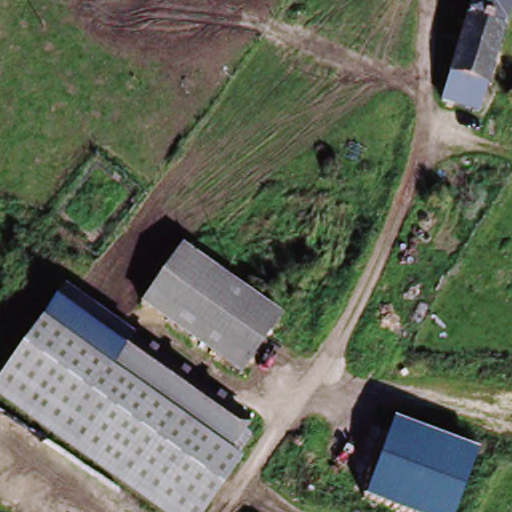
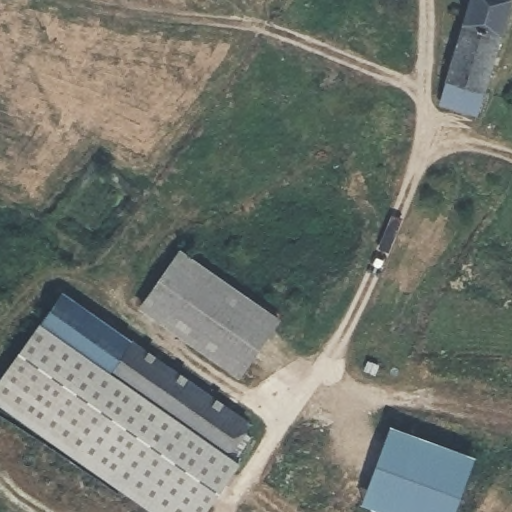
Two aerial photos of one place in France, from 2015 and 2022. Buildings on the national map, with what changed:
unchanged [(470,0),(510,0),(489,68),(452,57),(470,0)]
unchanged [(489,68),(481,94),(444,82),(452,57),(489,68)]
unchanged [(284,323),(244,377),(146,311),(184,257),(252,302),(284,323)]
unchanged [(56,295),(170,371),(149,401),(92,363),(35,326),(56,295)]
unchanged [(230,455),(242,462),(208,512),(152,512),(0,405),(0,378),(37,327),(92,363),(149,401),(170,371),(252,422),(230,455)]
unchanged [(394,432),(479,467),(459,512),(375,512),(362,507),(394,432)]

